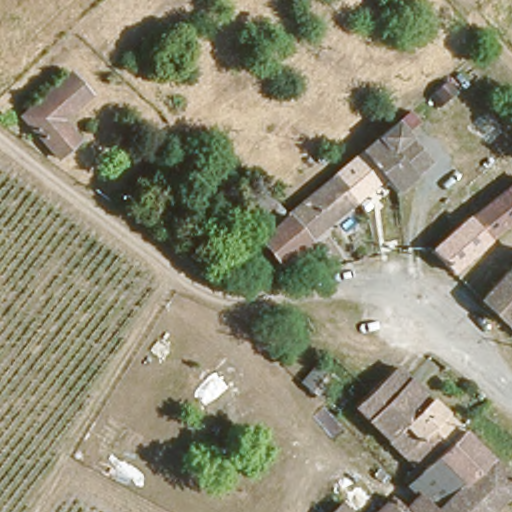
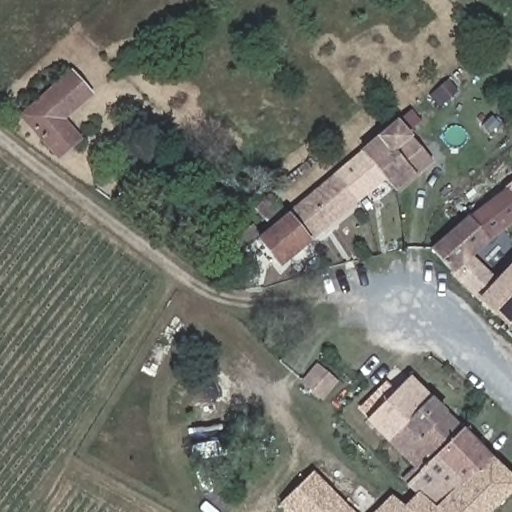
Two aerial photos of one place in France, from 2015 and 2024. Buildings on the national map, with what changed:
unchanged [(64,115),(81,137),(58,154),(14,106),(69,58),(94,88),(64,115)]
unchanged [(400,110),(436,149),(401,181),(401,180),(388,167),(364,140),(400,110)]
unchanged [(339,160),(364,140),(388,167),(362,188),(339,160)]
unchanged [(310,230),(286,204),(330,167),(339,160),(362,188),(310,230)]
unchanged [(428,241),(459,220),(455,213),(469,200),(475,206),(512,172),(512,216),(452,265),(428,241)]
unchanged [(310,230),(275,260),(251,233),(286,204),(310,230)]
unchanged [(486,286),(512,267),(512,311),(486,286)]
unchanged [(351,360),(352,361),(335,383),(319,370),(337,348),(351,360)]
unchanged [(455,430),(415,471),(383,440),(352,407),(397,362),(407,373),(428,394),(460,425),(455,430)]
unchanged [(483,512),(374,512),(384,501),(405,481),(415,471),(455,430),(460,425),(512,477),(512,483),(483,512)]
new [(313,472),(337,500),(326,512),(285,512),(278,505),(313,472)]
unchanged [(349,512),(326,512),(337,500),(349,512)]

